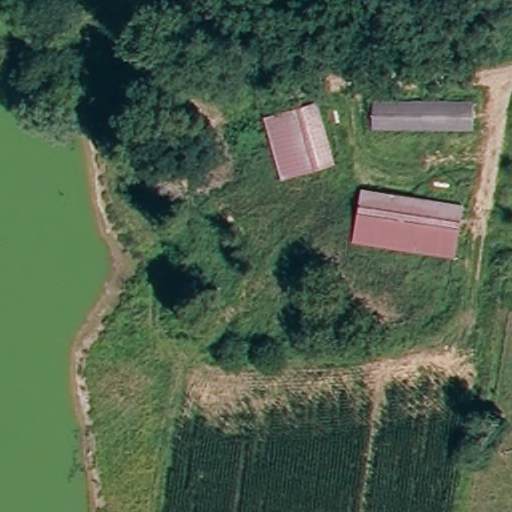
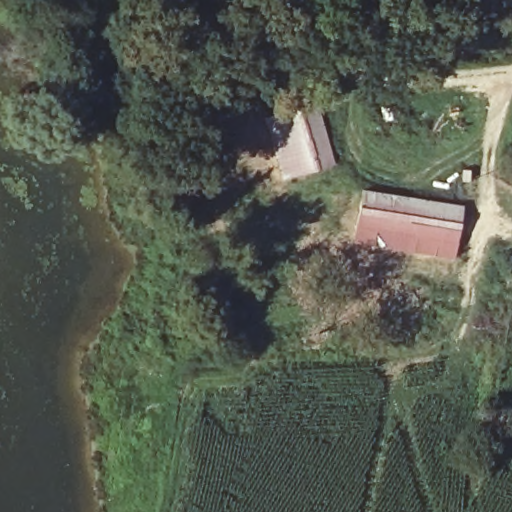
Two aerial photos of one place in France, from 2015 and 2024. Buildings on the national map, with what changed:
unchanged [(315,102),(333,160),(284,174),(268,117),(315,102)]
unchanged [(361,227),(363,192),(464,202),(459,239),(361,227)]
unchanged [(359,241),(361,227),(459,239),(458,252),(359,241)]

